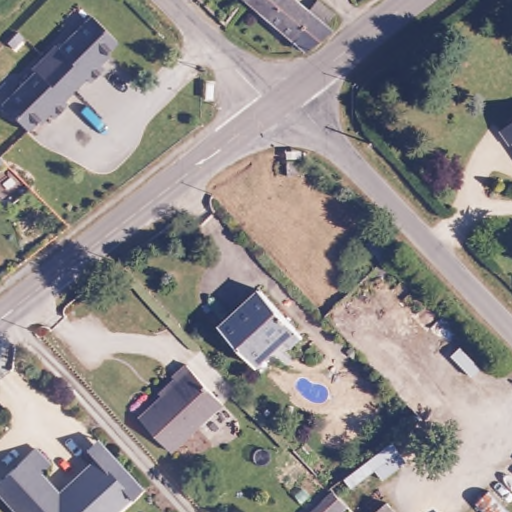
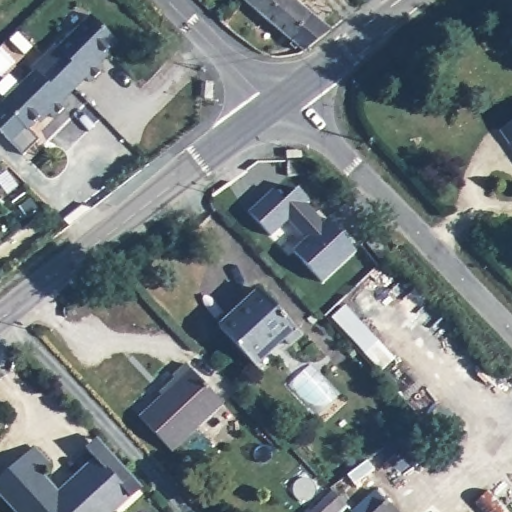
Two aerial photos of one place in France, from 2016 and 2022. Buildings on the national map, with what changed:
unchanged [(320,23),(326,29),(297,46),(242,0),(295,0),(307,10),(315,3),(326,14),(320,23)]
unchanged [(121,41),(100,60),(104,64),(90,79),(86,74),(64,95),(68,99),(53,113),(50,109),(30,128),(4,101),(39,68),(36,65),(59,44),(61,46),(95,14),(121,41)]
unchanged [(505,139),(494,124),(512,112),(512,142),(509,138),(505,139)]
unchanged [(286,173),(290,156),(308,157),(303,174),(286,173)]
new [(323,283),(293,250),(305,239),(287,220),(271,236),(249,212),(273,189),(285,199),(298,189),(310,202),(307,204),(323,223),(326,220),(355,253),(323,283)]
unchanged [(381,235),(395,250),(386,259),(372,243),(381,235)]
unchanged [(256,288),(294,326),(256,364),(217,324),(256,288)]
unchanged [(184,364),(222,404),(171,453),(139,419),(177,384),(171,376),(184,364)]
unchanged [(0,495),(0,483),(33,451),(48,466),(38,474),(57,495),(73,480),(93,461),(85,449),(98,439),(128,472),(141,487),(115,512),(16,512),(0,495)]
unchanged [(354,489),(330,512),(325,512),(314,498),(339,474),(354,489)]
unchanged [(475,508),(490,492),(509,512),(479,512),(475,508)]
unchanged [(391,505),(398,512),(383,512),(391,505)]

